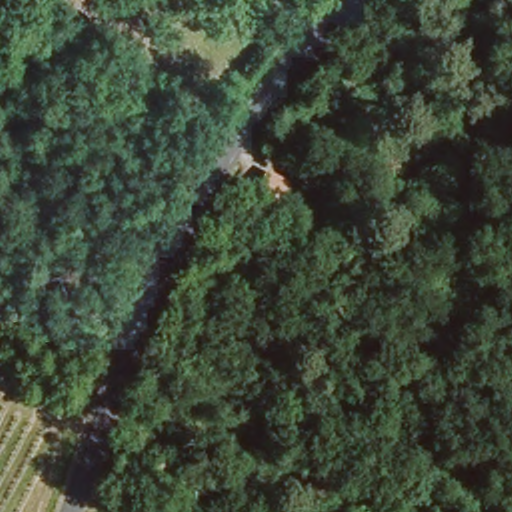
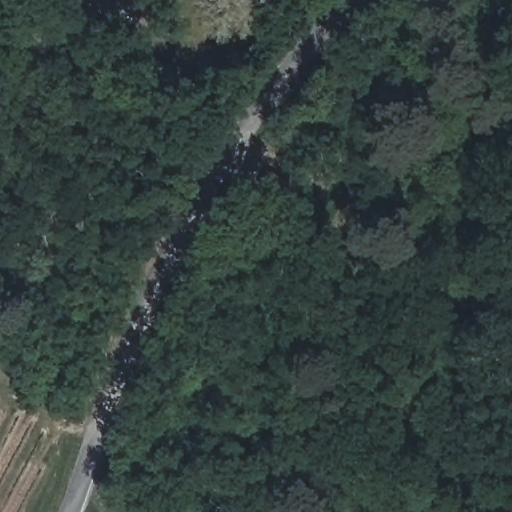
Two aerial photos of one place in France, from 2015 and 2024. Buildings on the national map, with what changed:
unchanged [(105,9),(94,22),(70,0),(95,0),(105,9)]

